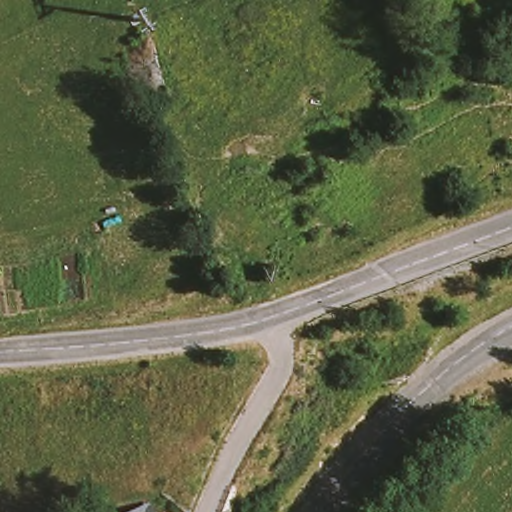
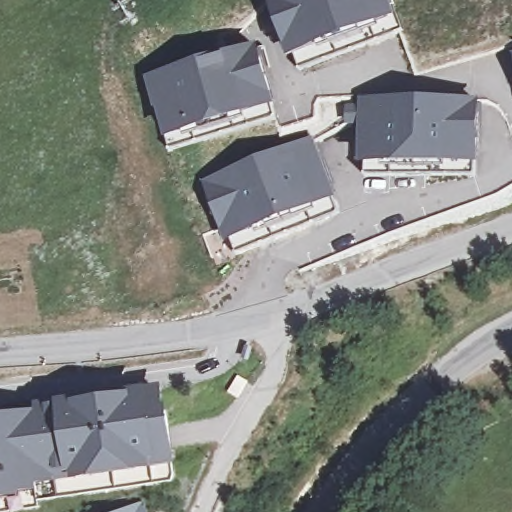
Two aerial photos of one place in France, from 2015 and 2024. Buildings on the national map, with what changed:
new [(300,68),(274,0),(394,0),(405,27),(300,68)]
new [(168,146),(146,73),(253,41),(275,114),(168,146)]
new [(364,172),(365,95),(477,96),(476,173),(364,172)]
new [(234,249),(206,178),(311,138),(338,209),(234,249)]
new [(245,379),(235,395),(226,390),(236,373),(245,379)]
new [(36,410),(36,405),(56,401),(146,388),(163,386),(165,404),(170,405),(177,465),(155,469),(75,481),(40,485),(40,490),(23,493),(24,499),(0,503),(0,415),(36,410)]
new [(24,499),(23,493),(40,490),(40,485),(75,481),(155,469),(177,465),(176,480),(37,499),(37,506),(1,512),(0,512),(0,503),(24,499)]
unchanged [(134,512),(142,509),(143,512),(134,512)]

